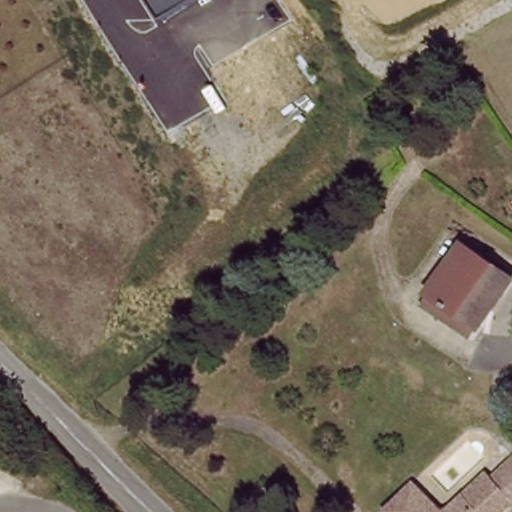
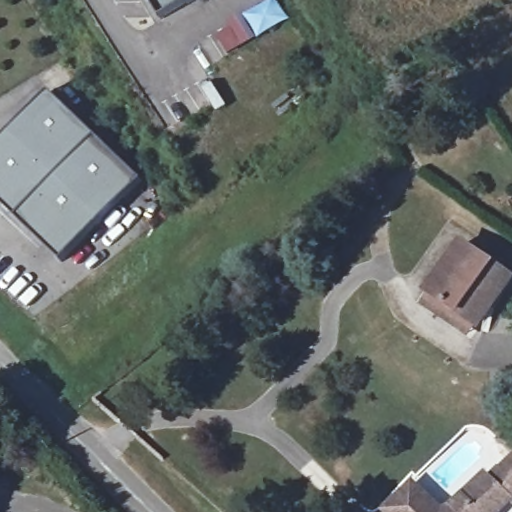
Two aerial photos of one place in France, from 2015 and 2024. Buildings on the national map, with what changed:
unchanged [(148,0),(192,0),(160,20),(148,0)]
new [(53,94),(144,184),(64,266),(0,203),(0,148),(53,94)]
unchanged [(461,252),(511,283),(478,336),(429,303),(461,252)]
unchanged [(389,503),(416,477),(444,506),(451,503),(465,491),(486,472),(491,478),(512,458),(512,501),(500,512),(397,512),(389,503)]

